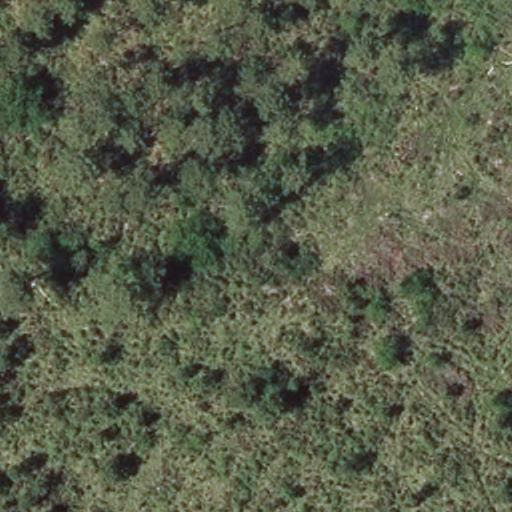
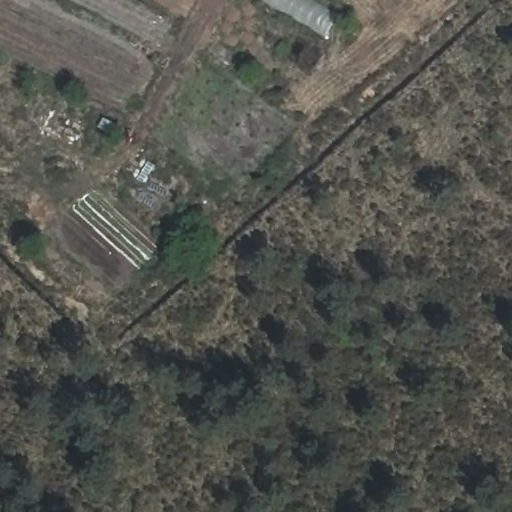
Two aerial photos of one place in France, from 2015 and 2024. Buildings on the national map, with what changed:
new [(340,15),(327,35),(265,0),(314,0),(340,15)]

